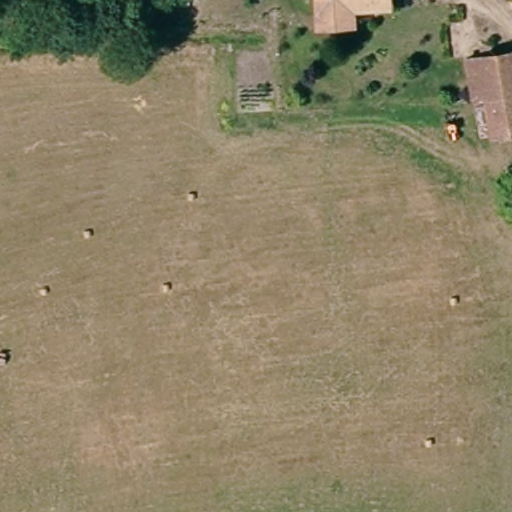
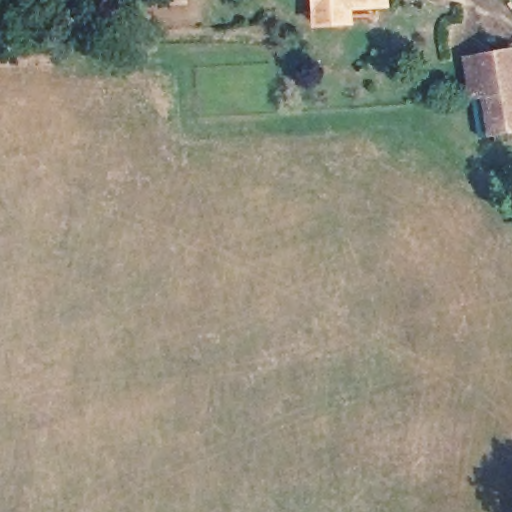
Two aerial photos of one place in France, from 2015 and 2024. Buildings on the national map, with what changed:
unchanged [(352,23),(315,24),(315,15),(315,14),(314,0),(387,0),(387,4),(352,5),(352,13),(352,23)]
unchanged [(512,52),(512,128),(476,130),(472,113),(467,55),(512,52)]

